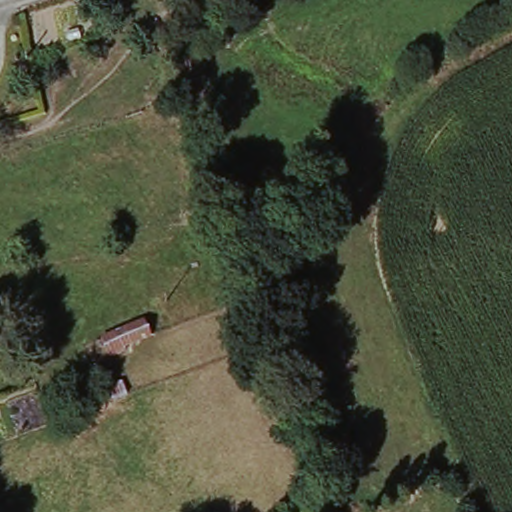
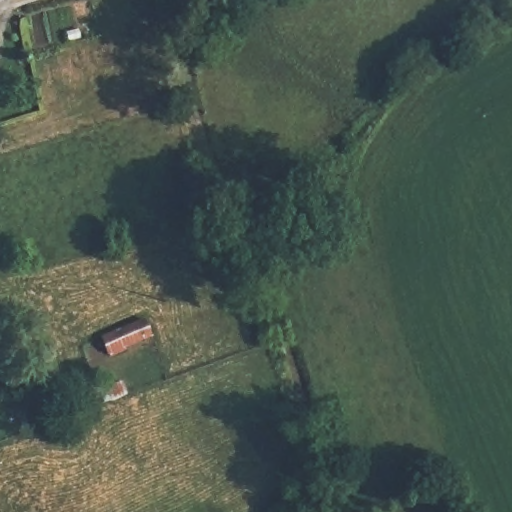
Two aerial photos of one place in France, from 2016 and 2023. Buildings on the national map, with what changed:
unchanged [(102,340),(147,323),(160,318),(166,333),(152,338),(108,356),(102,340)]

